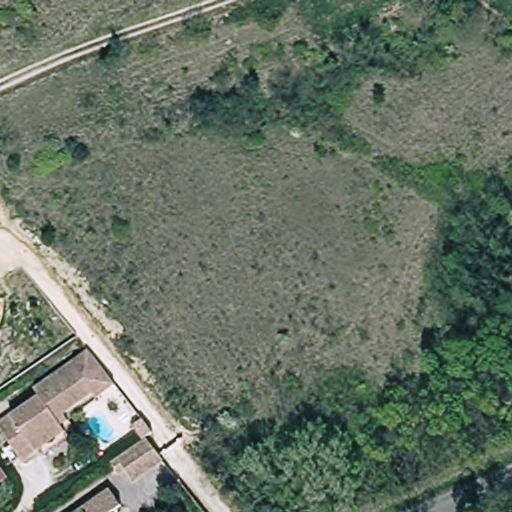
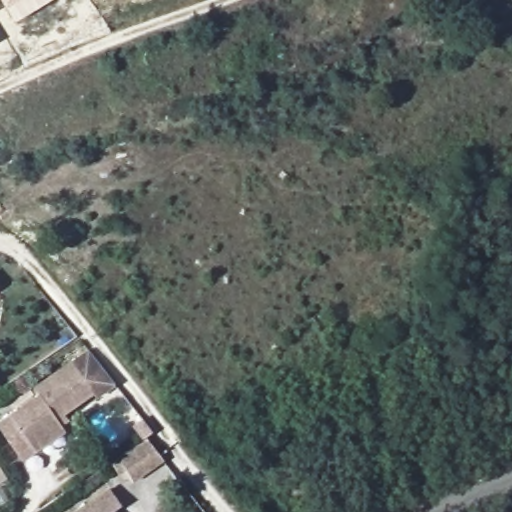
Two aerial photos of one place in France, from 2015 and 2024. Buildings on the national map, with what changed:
new [(9,6),(6,9),(1,0),(51,0),(18,20),(9,6)]
unchanged [(18,468),(0,439),(0,427),(39,403),(33,395),(90,358),(115,390),(93,403),(91,401),(54,424),(59,432),(64,440),(32,460),(18,468)]
unchanged [(128,471),(121,475),(113,462),(146,439),(137,425),(145,419),(156,433),(149,437),(166,460),(136,481),(128,471)]
unchanged [(120,510),(118,512),(78,512),(108,493),(120,510)]

